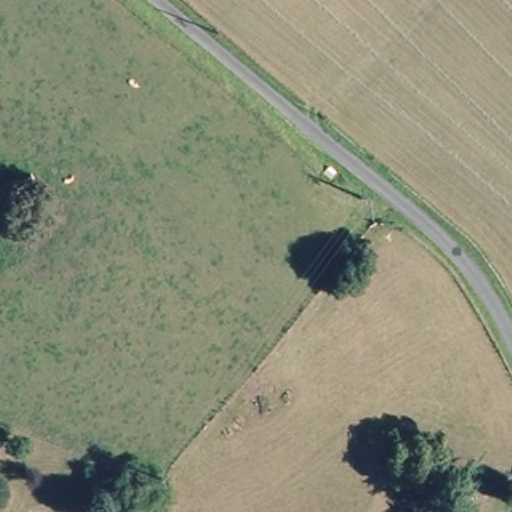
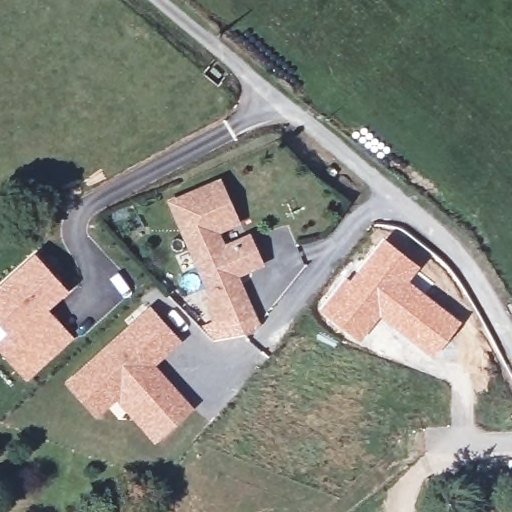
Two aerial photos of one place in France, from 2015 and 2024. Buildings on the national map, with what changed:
new [(237,222),(216,232),(224,249),(239,242),(250,237),(262,263),(251,268),(236,275),(241,286),(242,286),(252,309),(219,325),(208,302),(215,298),(172,204),(219,183),(237,222)]
new [(340,286),(384,237),(420,266),(409,279),(460,320),(432,358),(380,318),(360,342),(320,310),(340,286)]
new [(33,249),(70,289),(49,308),(73,336),(26,380),(0,351),(0,341),(7,334),(0,326),(0,283),(33,249)]
new [(183,339),(155,363),(195,407),(154,442),(118,400),(95,418),(62,382),(150,304),(183,339)]

